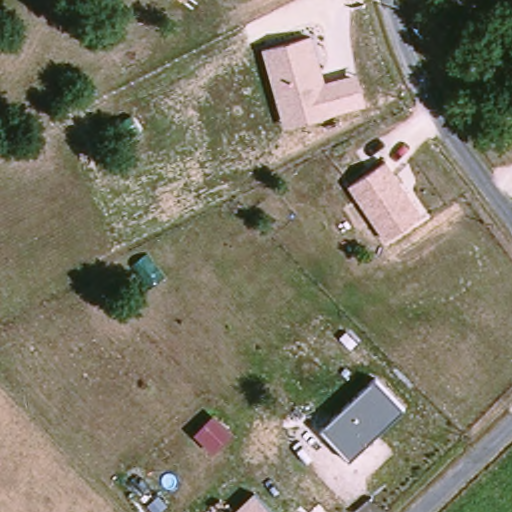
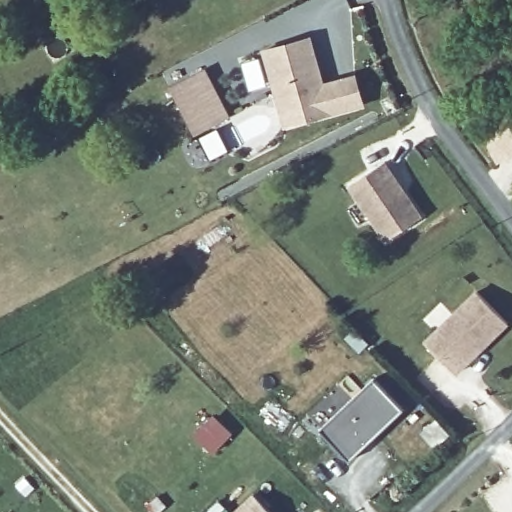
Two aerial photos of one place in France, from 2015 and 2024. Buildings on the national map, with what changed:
unchanged [(312,37),(323,83),(357,74),(366,106),(283,129),(263,51),(312,37)]
new [(205,69),(228,116),(192,134),(170,87),(205,69)]
new [(512,124),(512,152),(497,160),(486,137),(512,124)]
unchanged [(422,215),(385,242),(348,187),(386,161),(422,215)]
new [(509,326),(457,376),(423,342),(476,291),(509,326)]
unchanged [(405,409),(350,462),(318,428),(373,376),(405,409)]
unchanged [(233,512),(255,491),(274,512),(233,512)]

